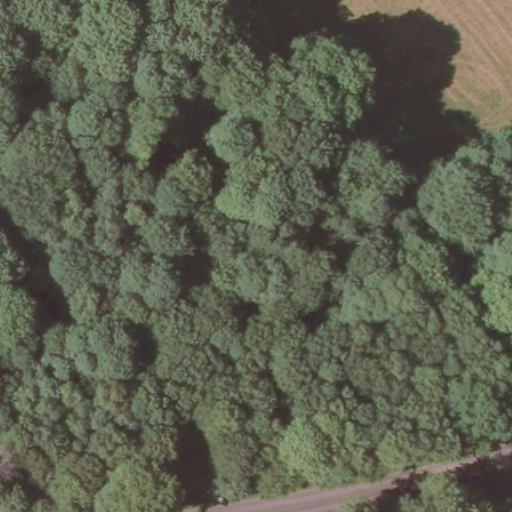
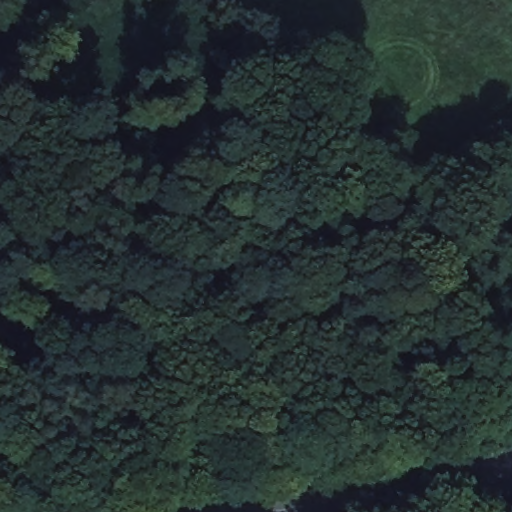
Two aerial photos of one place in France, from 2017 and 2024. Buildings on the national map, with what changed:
unchanged [(306,67),(291,82),(265,55),(280,40),(306,67)]

